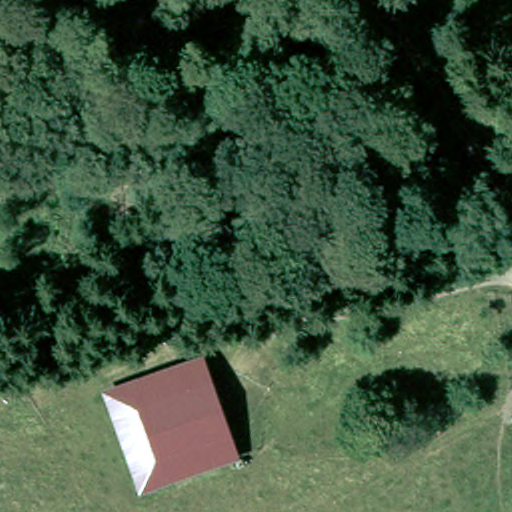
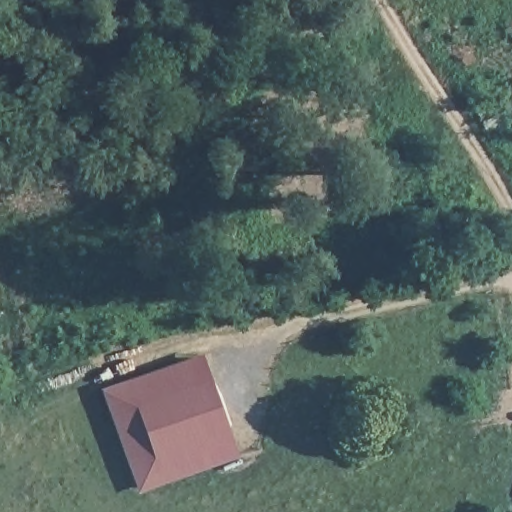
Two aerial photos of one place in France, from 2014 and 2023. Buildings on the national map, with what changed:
unchanged [(208,359),(234,459),(218,463),(138,482),(115,382),(168,369),(208,359)]

